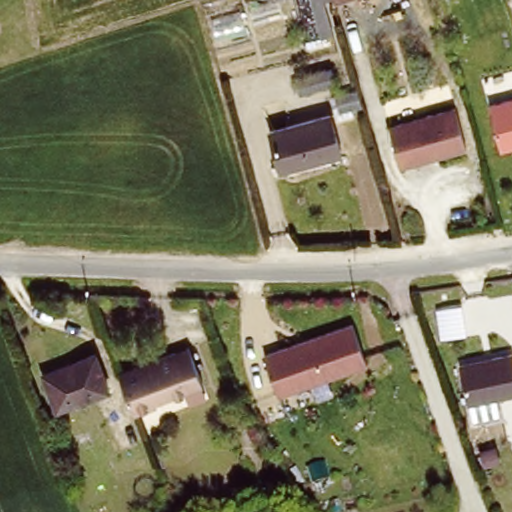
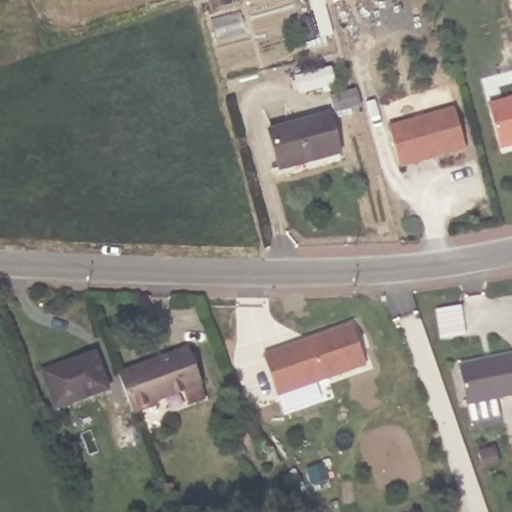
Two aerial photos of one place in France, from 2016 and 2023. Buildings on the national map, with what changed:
unchanged [(316,0),(313,1),(313,0),(316,0)]
unchanged [(293,74),(328,64),(333,81),(298,91),(293,74)]
unchanged [(366,106),(339,114),(334,98),(361,90),(366,106)]
unchanged [(504,145),(492,106),(512,100),(512,143),(504,145)]
unchanged [(469,144),(405,163),(393,120),(457,102),(469,144)]
unchanged [(334,117),(344,152),(283,169),(273,134),(334,117)]
unchanged [(351,325),(367,367),(278,397),(264,356),(351,325)]
unchanged [(117,370),(183,344),(198,378),(153,396),(155,401),(133,409),(117,370)]
unchanged [(45,371),(93,351),(108,386),(59,405),(45,371)]
unchanged [(512,352),(512,354),(512,395),(469,406),(459,369),(491,361),(490,358),(512,352)]

